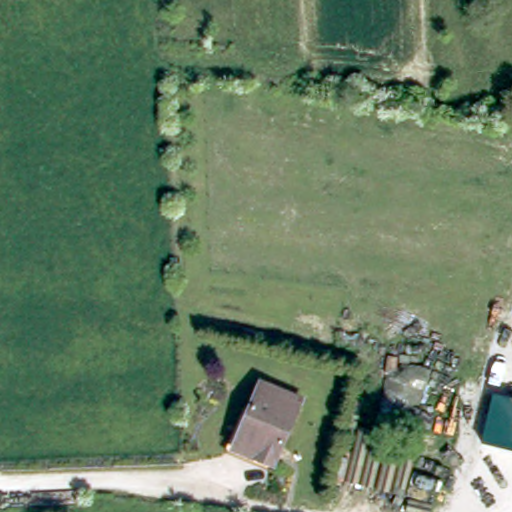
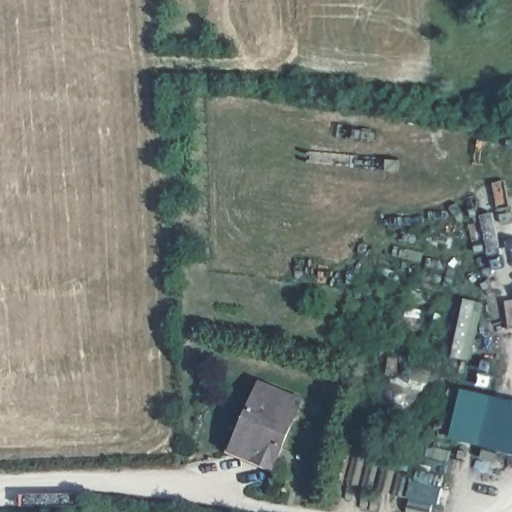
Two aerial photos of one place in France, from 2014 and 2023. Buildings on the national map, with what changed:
unchanged [(258,457),(232,445),(261,379),(303,397),(277,456),(274,466),(258,457)]
new [(482,442),(446,435),(455,388),(489,395),(482,442)]
unchanged [(512,400),(512,451),(482,442),(489,395),(512,400)]

